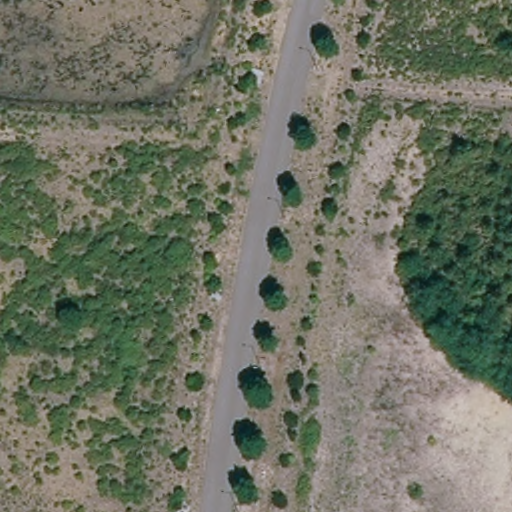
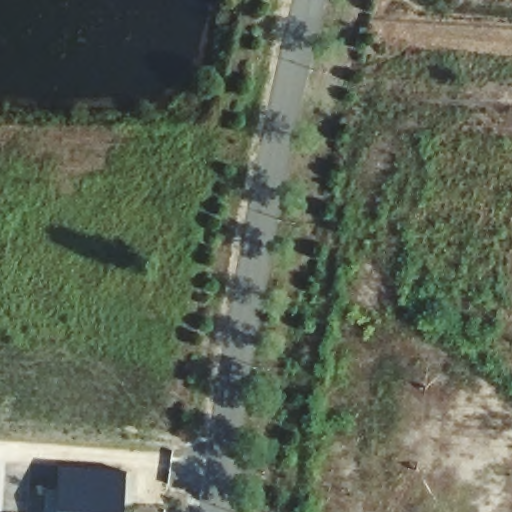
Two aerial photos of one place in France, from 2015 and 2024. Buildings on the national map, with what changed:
new [(123,474),(121,512),(61,512),(63,468),(123,474)]

